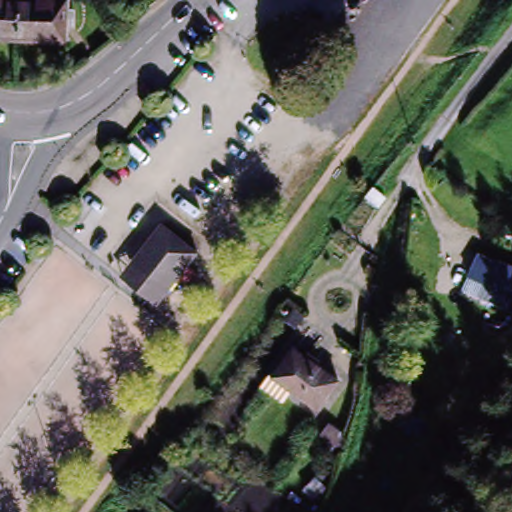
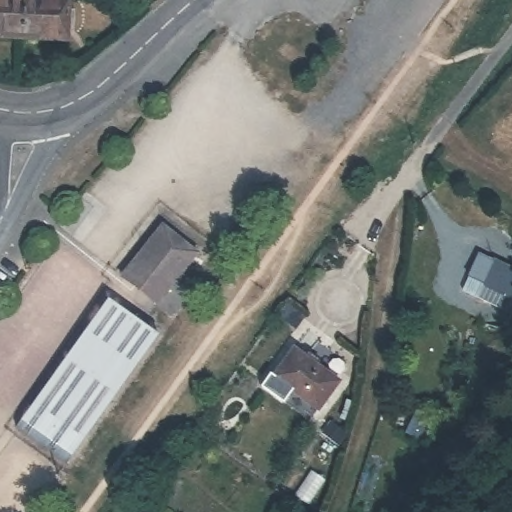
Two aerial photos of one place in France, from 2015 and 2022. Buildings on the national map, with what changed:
unchanged [(0,39),(0,0),(15,0),(13,40),(0,39)]
unchanged [(63,0),(62,43),(13,40),(15,0),(63,0)]
unchanged [(122,280),(132,266),(160,226),(197,253),(167,293),(157,306),(122,280)]
unchanged [(496,266),(485,290),(471,283),(482,260),(496,266)]
new [(15,428),(107,300),(157,335),(67,465),(15,428)]
unchanged [(259,380),(268,367),(272,369),(292,341),(336,374),(315,401),(290,383),(281,395),(259,380)]

